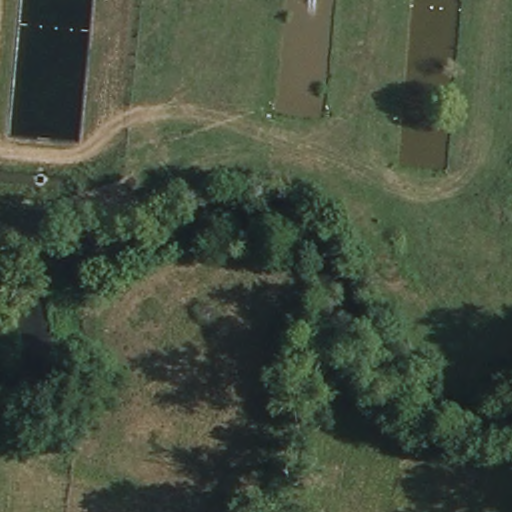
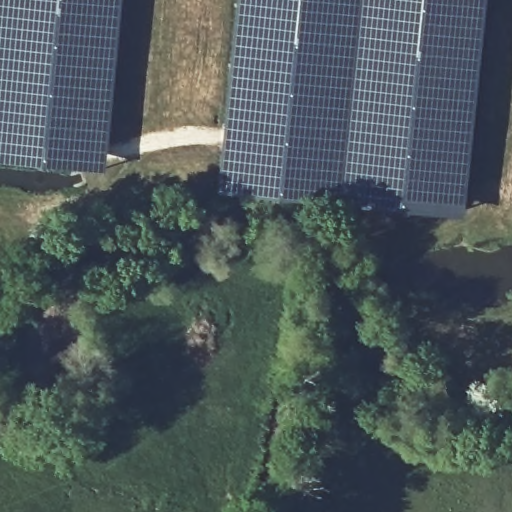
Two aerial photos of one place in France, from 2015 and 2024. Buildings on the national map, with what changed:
new [(0,160),(0,0),(121,0),(105,170),(0,160)]
new [(465,215),(219,191),(238,0),(487,0),(465,215)]

